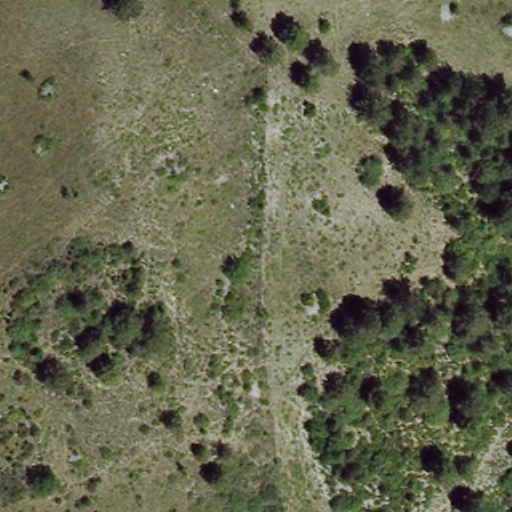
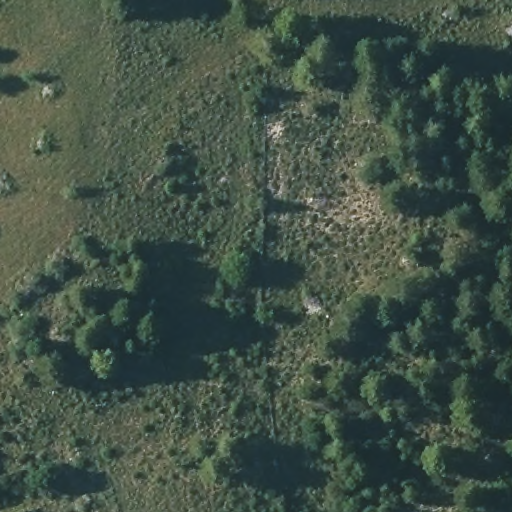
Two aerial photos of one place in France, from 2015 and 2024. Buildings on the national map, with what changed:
[]

